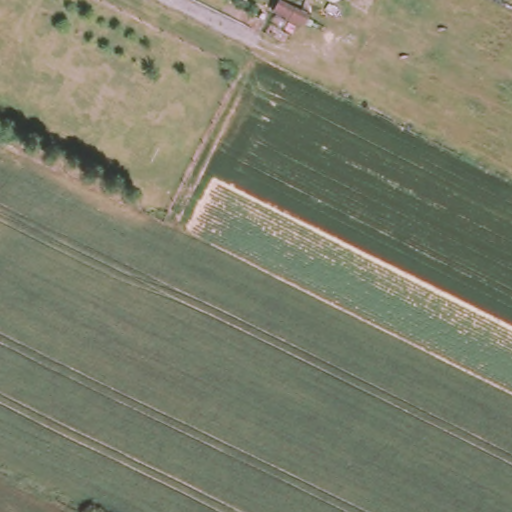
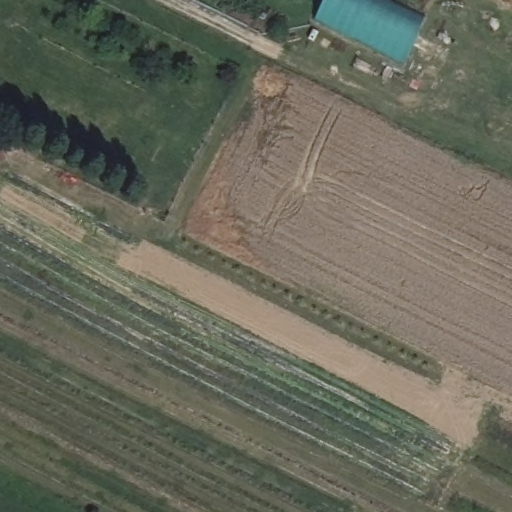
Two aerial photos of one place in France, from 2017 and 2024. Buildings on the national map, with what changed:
new [(322,0),(376,0),(423,22),(404,60),(314,17),(322,0)]

